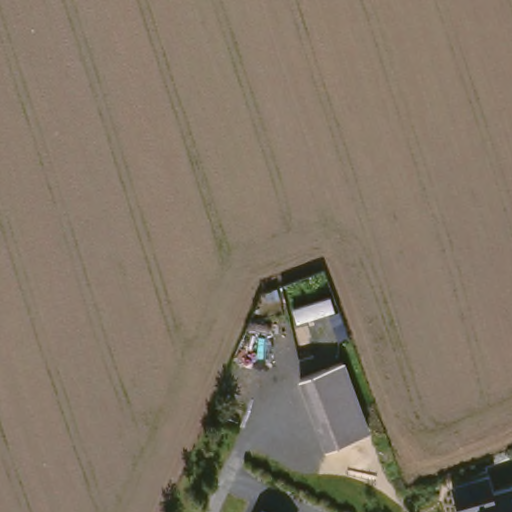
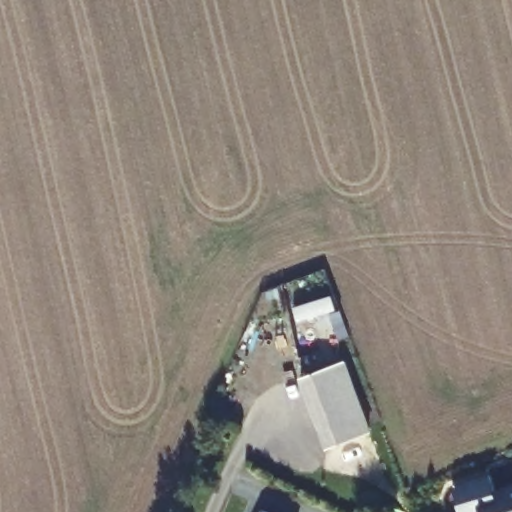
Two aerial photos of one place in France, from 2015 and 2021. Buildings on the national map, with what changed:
unchanged [(343,366),(371,436),(329,453),(300,383),(343,366)]
unchanged [(458,487),(494,477),(499,495),(512,491),(512,512),(466,512),(458,487)]
unchanged [(256,511),(259,512),(256,512),(256,511)]

